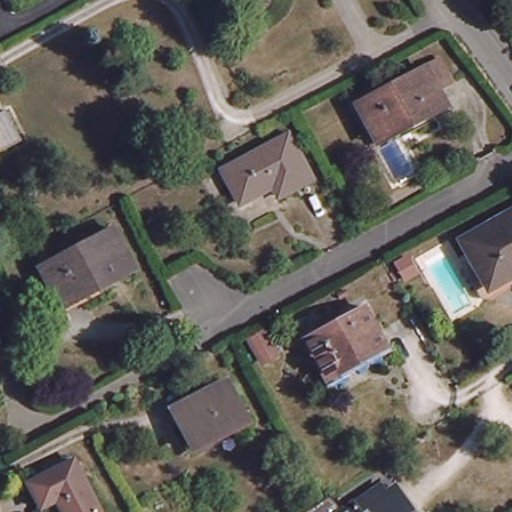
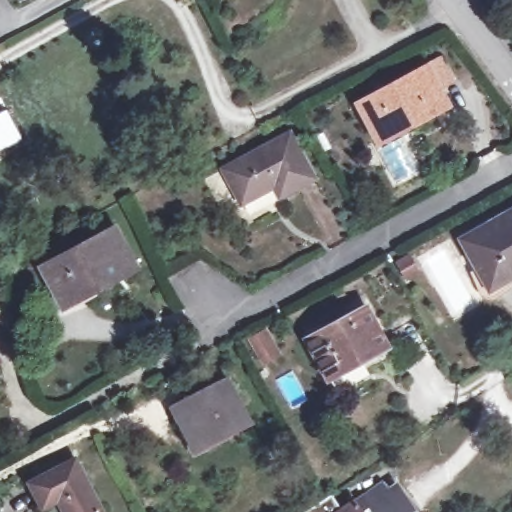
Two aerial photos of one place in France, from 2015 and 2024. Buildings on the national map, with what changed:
unchanged [(429,66),(451,107),(378,145),(357,105),(429,66)]
unchanged [(0,157),(0,120),(8,116),(23,146),(0,157)]
unchanged [(281,202),(275,192),(242,209),(224,175),(290,140),(314,183),(281,202)]
unchanged [(512,213),(512,278),(491,290),(464,240),(512,213)]
unchanged [(115,229),(137,270),(63,308),(41,267),(115,229)]
unchanged [(371,312),(393,351),(333,383),(311,344),(371,312)]
unchanged [(0,375),(0,353),(9,370),(0,375)]
unchanged [(230,382),(251,423),(196,451),(174,410),(230,382)]
unchanged [(64,505),(51,512),(48,512),(36,487),(80,466),(104,512),(68,512),(64,505)]
unchanged [(417,512),(355,512),(364,506),(366,507),(375,501),(391,490),(395,497),(403,492),(417,512)]

